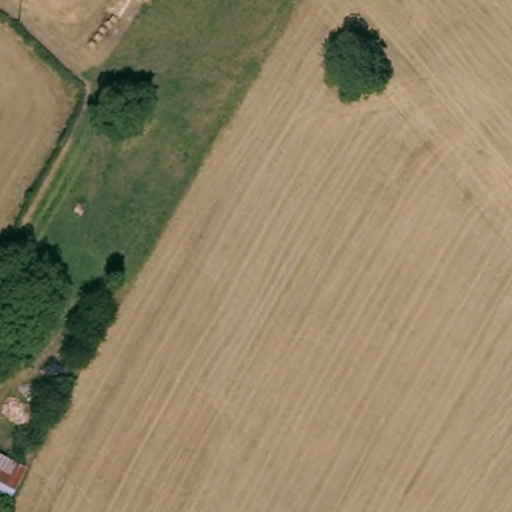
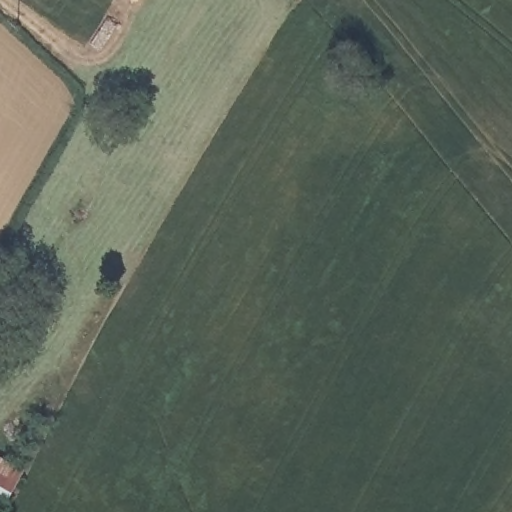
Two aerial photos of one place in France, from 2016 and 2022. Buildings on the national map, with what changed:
unchanged [(30,467),(6,512),(0,512),(0,451),(30,467)]

